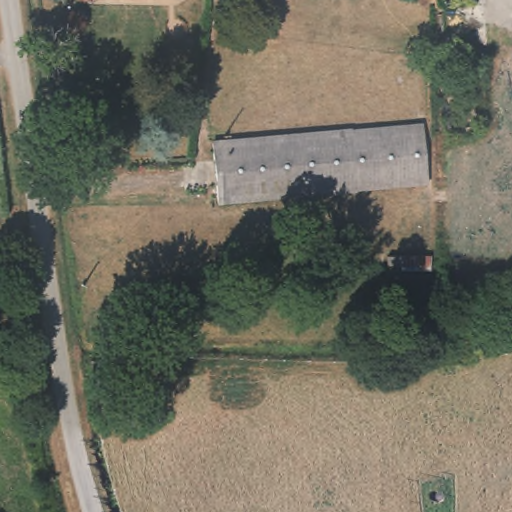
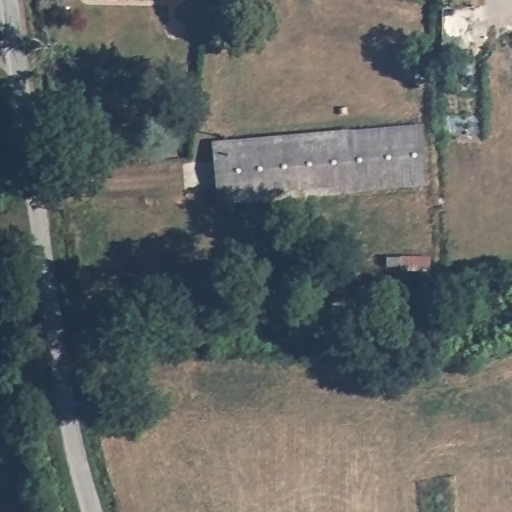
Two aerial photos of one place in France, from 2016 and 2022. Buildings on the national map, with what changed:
unchanged [(101,0),(176,0),(176,2),(151,2),(101,3),(101,0)]
unchanged [(422,131),(426,191),(217,207),(212,147),(422,131)]
unchanged [(429,259),(429,273),(402,271),(399,266),(388,266),(387,257),(429,259)]

